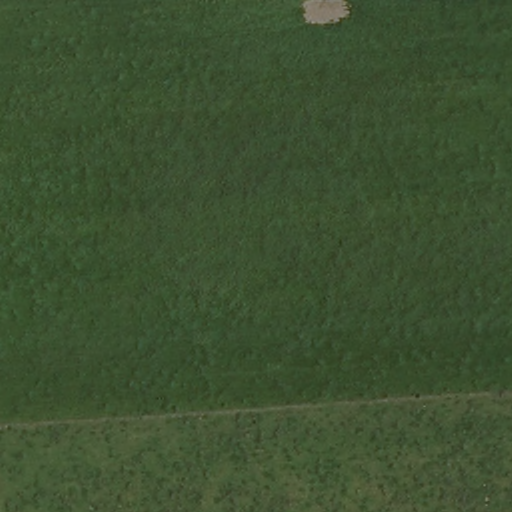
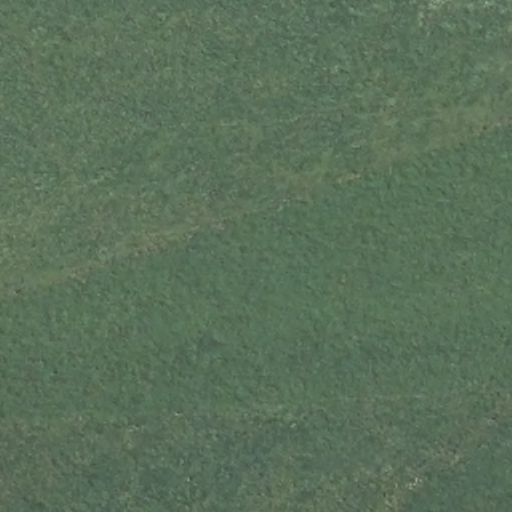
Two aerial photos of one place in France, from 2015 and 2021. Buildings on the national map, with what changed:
[]

